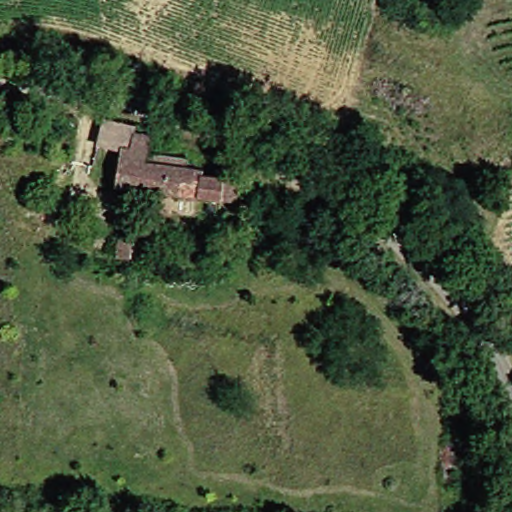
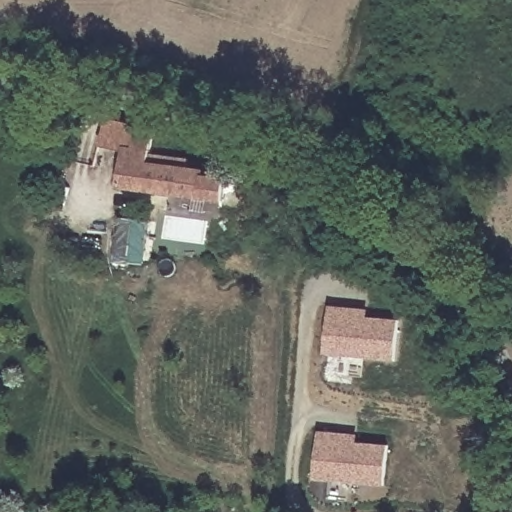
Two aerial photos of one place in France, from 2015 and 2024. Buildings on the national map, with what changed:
unchanged [(102,145),(106,117),(139,123),(138,130),(150,131),(147,149),(185,155),(184,165),(232,171),(230,194),(120,181),(125,150),(102,145)]
unchanged [(117,265),(117,247),(132,247),(131,265),(117,265)]
new [(367,309),(367,317),(399,320),(396,359),(325,353),(329,306),(367,309)]
new [(315,479),(318,432),(356,434),(355,443),(388,446),(385,485),(315,479)]

